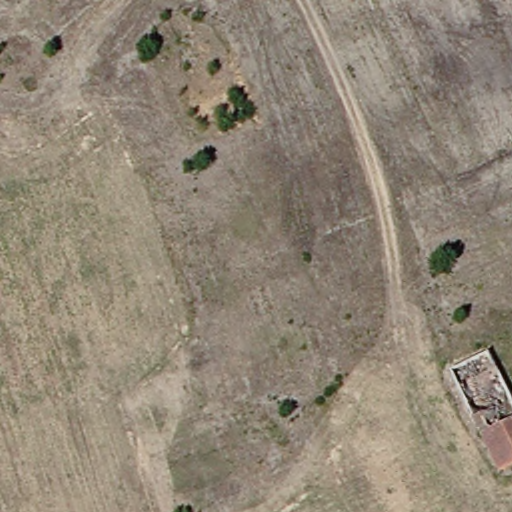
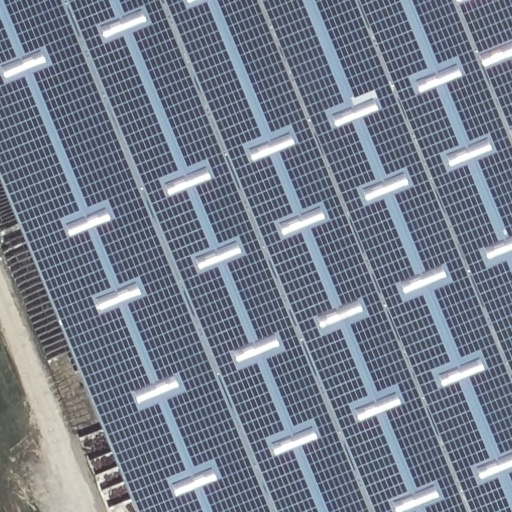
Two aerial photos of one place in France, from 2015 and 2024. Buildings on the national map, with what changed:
new [(512,0),(512,512),(133,512),(0,184),(0,0),(512,0)]
demolished [(477,355),(512,421),(512,463),(490,473),(440,372),(477,355)]
demolished [(368,411),(414,512),(372,512),(333,426),(368,411)]

